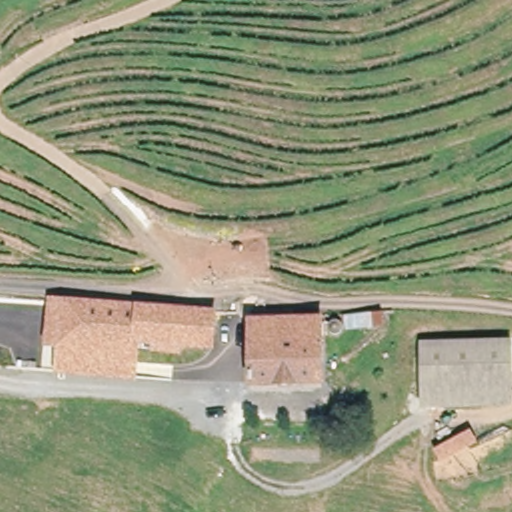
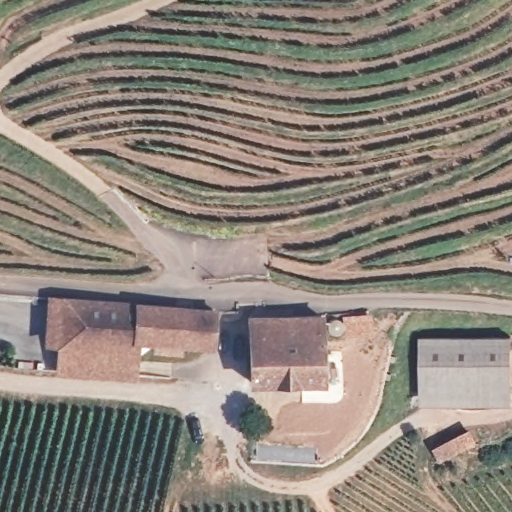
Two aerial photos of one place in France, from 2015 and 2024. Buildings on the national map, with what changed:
unchanged [(46,295),(135,302),(133,325),(133,329),(132,343),(138,343),(136,380),(54,373),(55,347),(44,346),(46,295)]
unchanged [(133,329),(133,325),(135,302),(211,310),(209,348),(154,345),(138,343),(132,343),(133,329)]
unchanged [(242,378),(241,313),(312,315),(313,383),(242,385),(242,378)]
unchanged [(507,340),(508,404),(418,407),(416,343),(507,340)]

